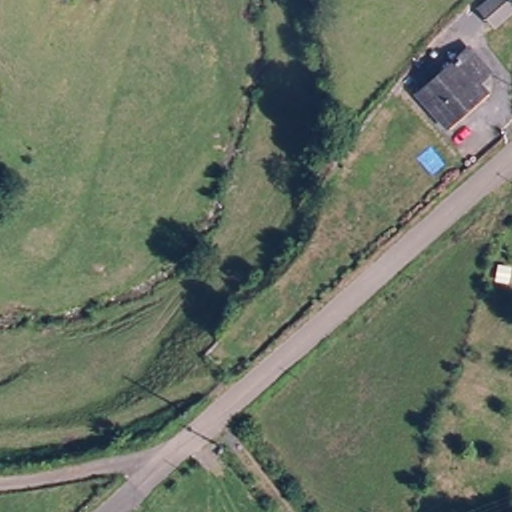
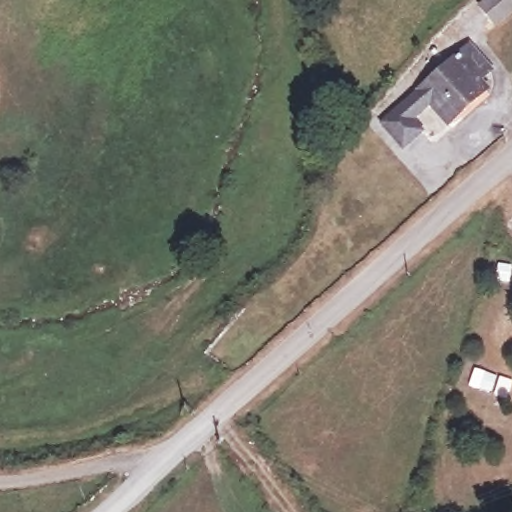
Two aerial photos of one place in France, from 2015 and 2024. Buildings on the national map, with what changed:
unchanged [(478,8),(488,0),(512,0),(512,10),(493,26),(478,8)]
unchanged [(466,46),(485,66),(473,77),(482,90),(441,124),(427,109),(412,92),(466,46)]
new [(412,92),(427,109),(414,120),(425,131),(403,151),(378,122),(412,92)]

